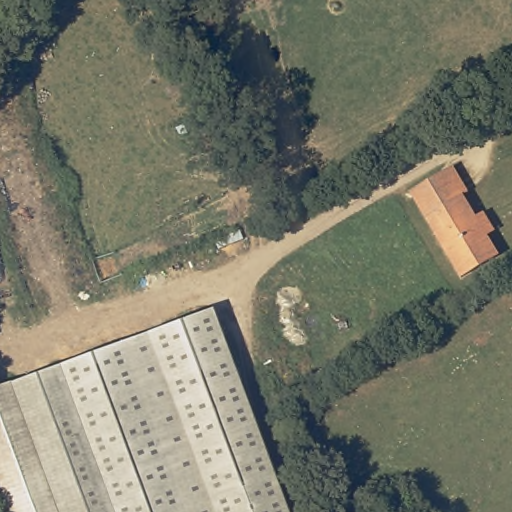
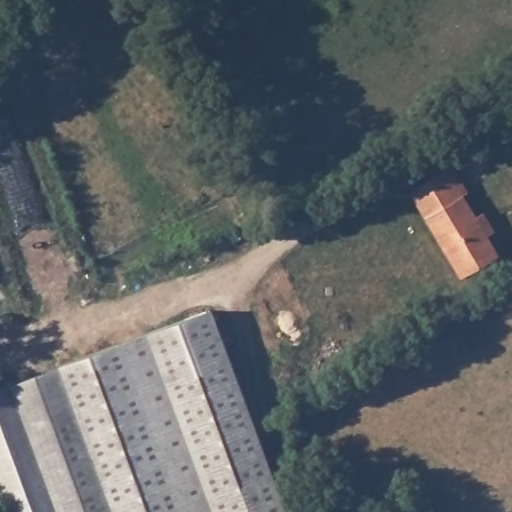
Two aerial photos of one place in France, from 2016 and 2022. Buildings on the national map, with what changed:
unchanged [(452,171),(467,196),(462,199),(475,221),(482,217),(493,235),(486,239),(498,259),(460,282),(409,196),(447,174),(452,171)]
unchanged [(211,310),(287,512),(116,512),(62,365),(211,310)]
unchanged [(0,471),(0,389),(5,387),(62,365),(116,512),(15,512),(0,471)]

